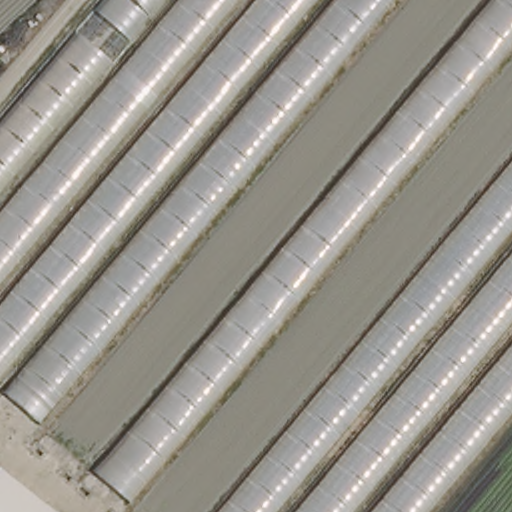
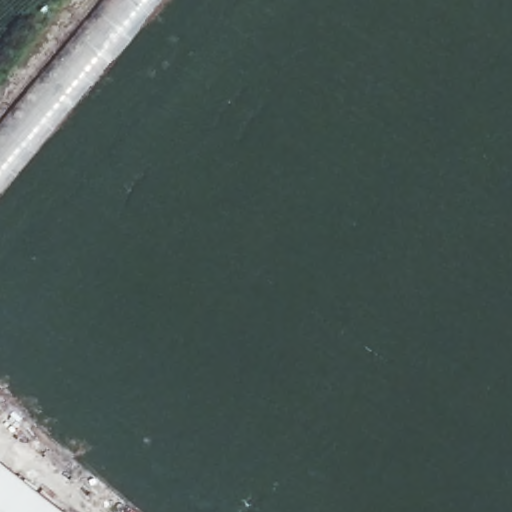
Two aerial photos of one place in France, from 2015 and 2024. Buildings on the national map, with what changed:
new [(17,94),(55,53),(88,19),(103,0),(167,0),(129,44),(89,96),(22,172),(0,197),(0,114),(17,94)]
demolished [(512,414),(431,512),(144,512),(0,389),(0,129),(106,0),(512,0),(512,414)]
unchanged [(57,512),(0,512),(0,470),(2,468),(57,512)]

